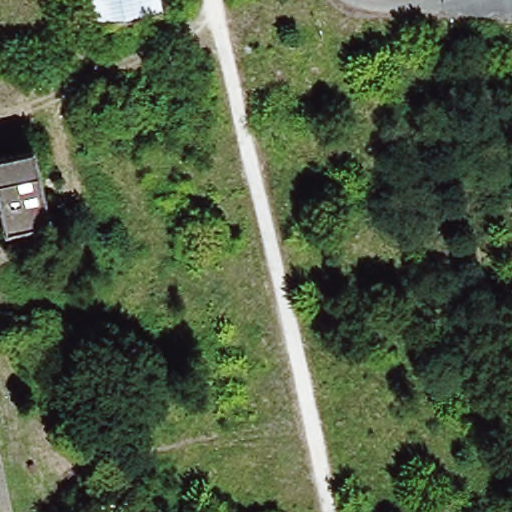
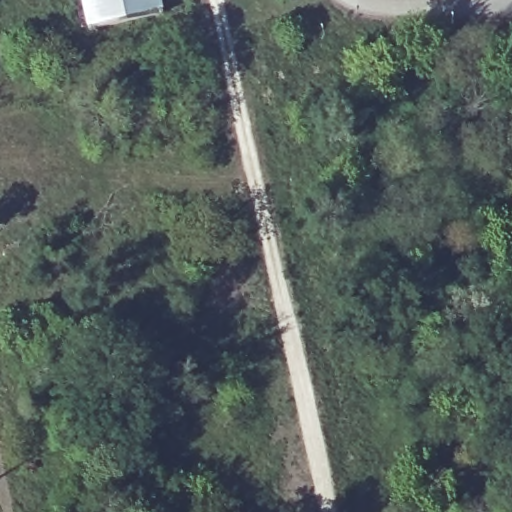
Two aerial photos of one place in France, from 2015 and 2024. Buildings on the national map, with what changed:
unchanged [(159,0),(162,10),(86,28),(79,0),(159,0)]
demolished [(0,212),(0,156),(35,148),(52,224),(5,233),(0,212)]

